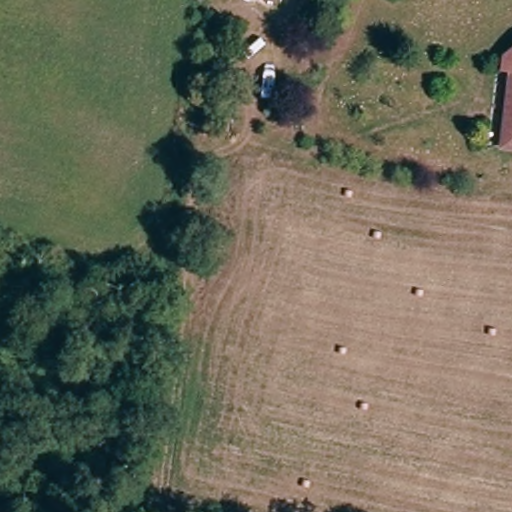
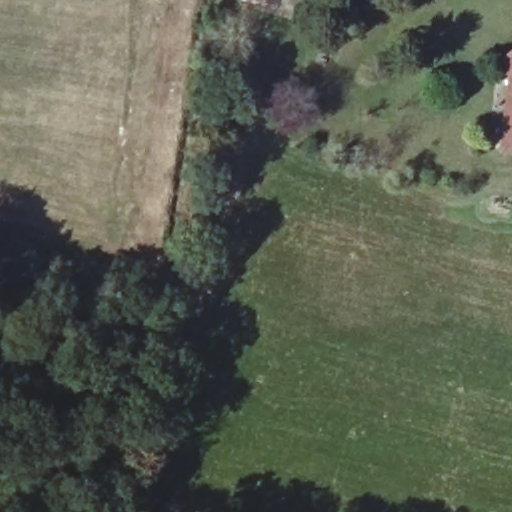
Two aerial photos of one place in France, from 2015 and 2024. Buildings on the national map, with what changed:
unchanged [(496,143),(505,70),(496,69),(497,56),(512,46),(512,145),(496,143)]

